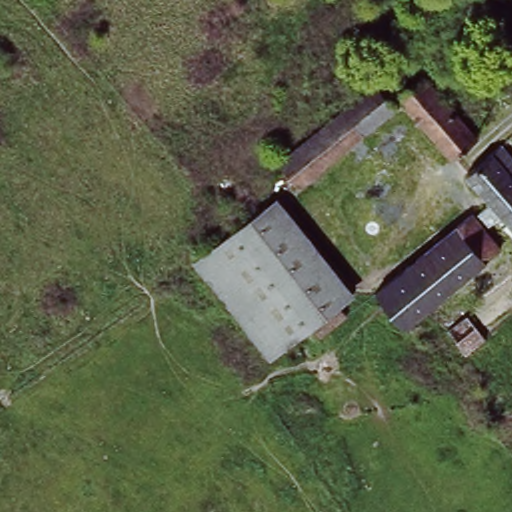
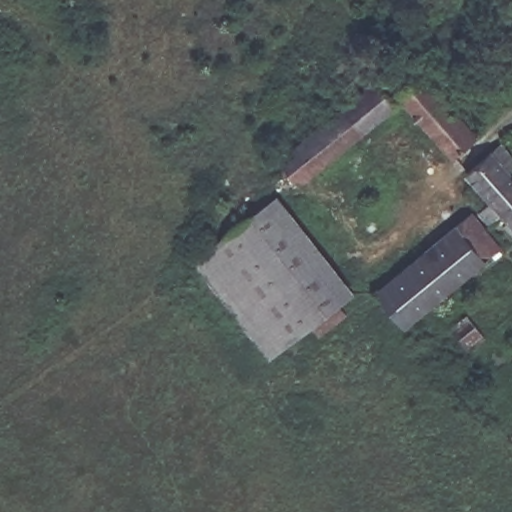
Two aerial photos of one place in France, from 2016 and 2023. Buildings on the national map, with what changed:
unchanged [(467,132),(442,154),(389,94),(415,73),(467,132)]
unchanged [(391,107),(295,184),(271,155),(367,79),(391,107)]
unchanged [(485,223),(475,212),(487,203),(462,174),(498,143),(512,159),(512,169),(504,176),(512,185),(512,233),(496,214),(485,223)]
unchanged [(187,257),(275,192),(354,292),(335,303),(346,312),(317,337),(307,325),(267,356),(187,257)]
unchanged [(367,288),(447,223),(459,238),(474,225),(485,240),(470,252),(479,262),(399,326),(367,288)]

